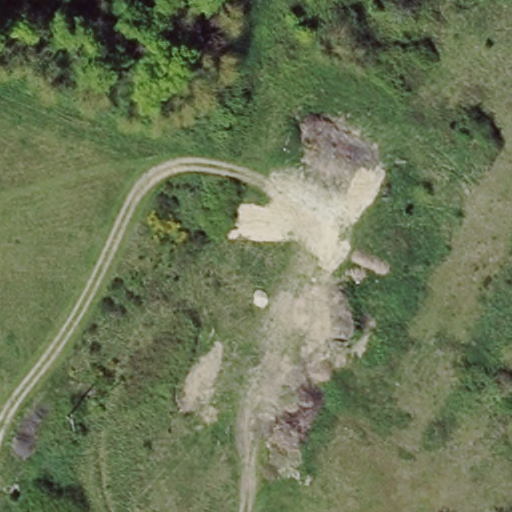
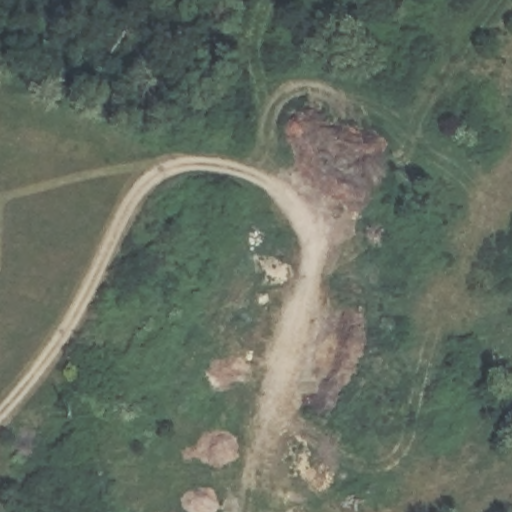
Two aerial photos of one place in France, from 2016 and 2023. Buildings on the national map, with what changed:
[]

